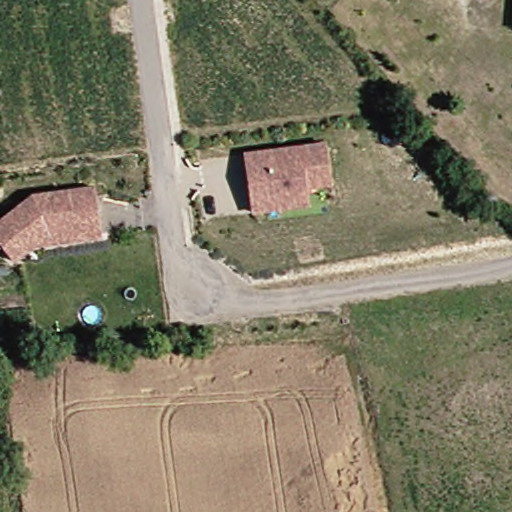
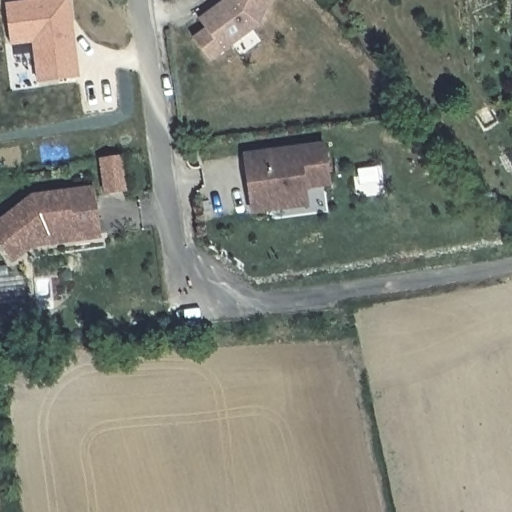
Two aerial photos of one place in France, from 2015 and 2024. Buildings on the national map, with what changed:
new [(37,83),(31,42),(10,44),(5,1),(19,0),(73,0),(81,75),(37,83)]
new [(211,61),(193,37),(207,27),(200,18),(225,0),(271,0),(261,25),(211,61)]
unchanged [(281,207),(254,212),(246,154),(325,142),(330,183),(306,186),(308,204),(281,207)]
new [(121,157),(126,189),(109,192),(104,159),(121,157)]
unchanged [(0,247),(0,217),(30,193),(92,185),(98,233),(71,237),(29,242),(9,258),(0,247)]

